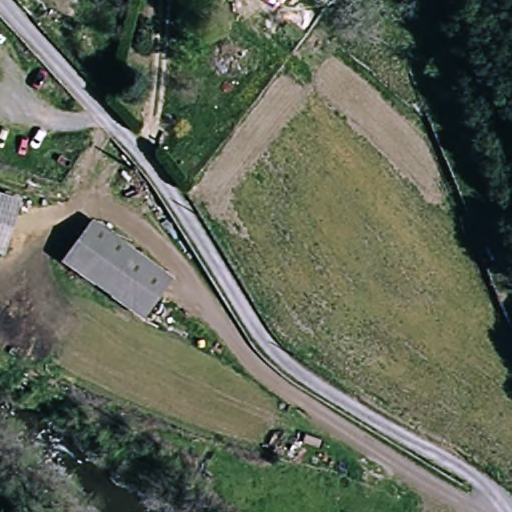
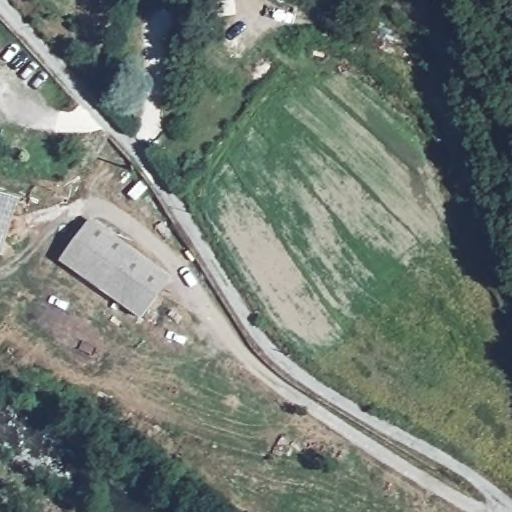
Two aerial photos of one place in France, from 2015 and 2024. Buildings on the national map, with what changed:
unchanged [(0,248),(0,195),(27,204),(10,251),(0,248)]
unchanged [(171,278),(146,311),(65,259),(93,225),(171,278)]

